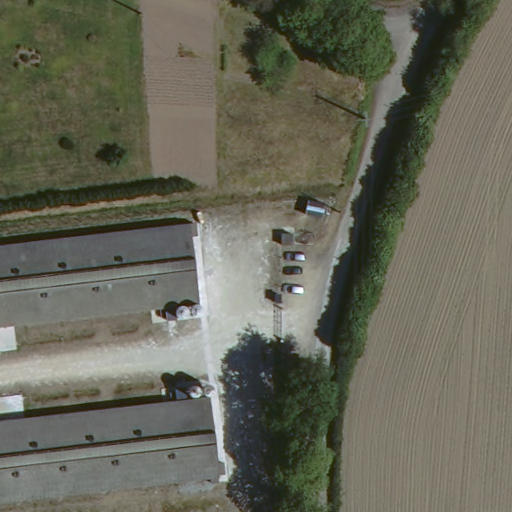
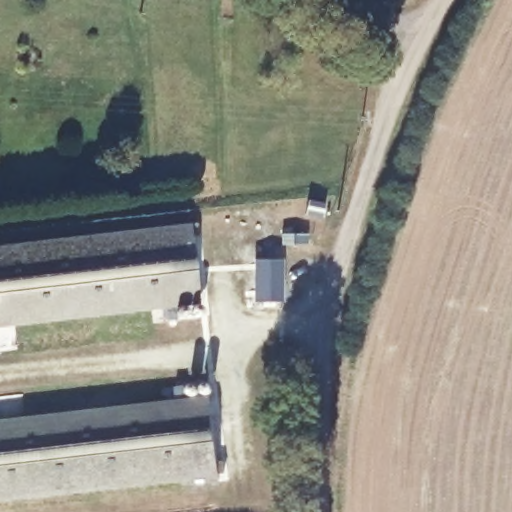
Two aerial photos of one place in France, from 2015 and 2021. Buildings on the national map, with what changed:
unchanged [(188,224),(197,302),(0,325),(0,245),(188,224)]
new [(284,301),(251,301),(253,259),(282,257),(284,301)]
unchanged [(204,400),(213,480),(0,504),(0,424),(204,400)]

